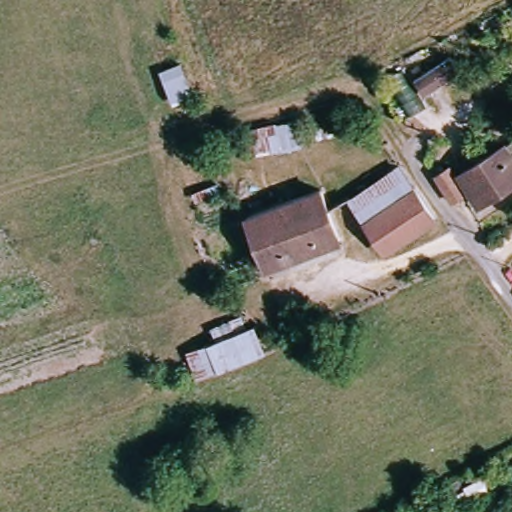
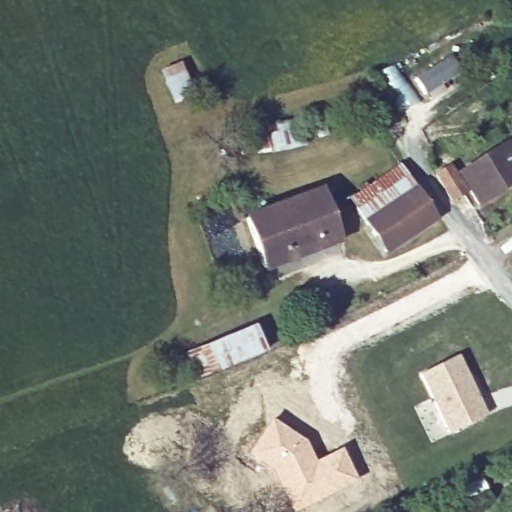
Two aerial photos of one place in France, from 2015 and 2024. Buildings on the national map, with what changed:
unchanged [(461,175),(507,147),(512,155),(512,188),(480,206),(461,175)]
unchanged [(397,171),(415,195),(368,227),(352,203),(397,171)]
unchanged [(438,179),(451,171),(467,195),(455,203),(438,179)]
unchanged [(323,195),(340,246),(270,270),(252,220),(323,195)]
unchanged [(435,225),(390,256),(368,227),(415,195),(435,225)]
unchanged [(270,354),(200,383),(190,356),(259,325),(270,354)]
new [(458,356),(487,415),(451,433),(421,374),(458,356)]
new [(304,438),(316,459),(342,446),(359,478),(296,512),(295,512),(270,471),(248,454),(270,417),(304,438)]

